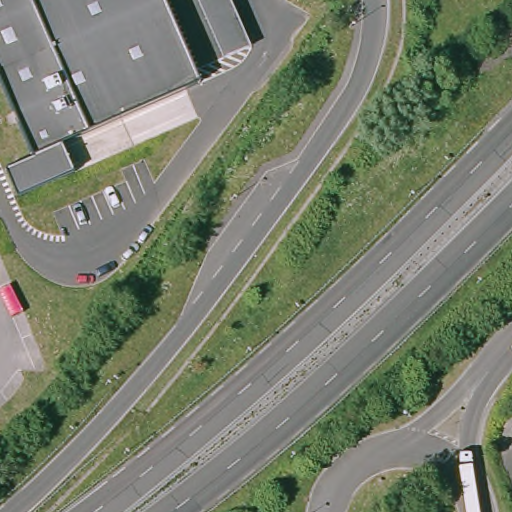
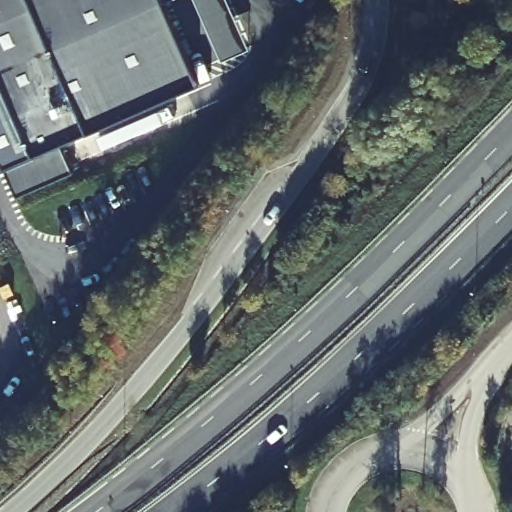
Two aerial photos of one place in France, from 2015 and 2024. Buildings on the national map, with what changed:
unchanged [(165,4),(199,82),(61,143),(74,171),(18,196),(7,168),(32,157),(0,82),(0,0),(173,0),(165,4)]
unchanged [(250,47),(222,60),(196,0),(229,0),(250,47)]

